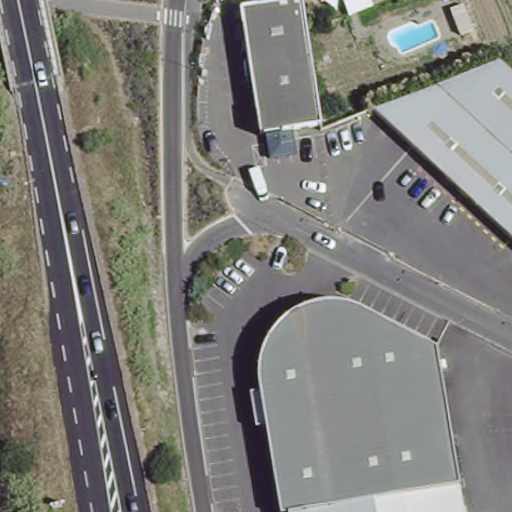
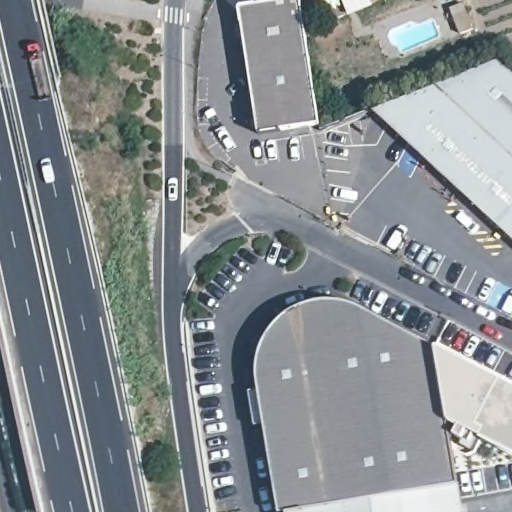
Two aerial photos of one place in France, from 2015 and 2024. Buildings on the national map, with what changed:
unchanged [(240,9),(302,0),(308,43),(320,126),(259,135),(240,9)]
unchanged [(351,15),(345,0),(384,0),(351,15)]
unchanged [(497,59),(512,72),(512,235),(373,111),(497,59)]
unchanged [(256,367),(257,358),(258,349),(261,340),(265,332),(270,325),(276,318),(282,312),(290,307),(298,303),(306,300),(315,298),(324,297),(333,297),(342,299),(351,302),(359,306),(436,347),(465,512),(305,512),(280,512),(257,379),(256,367)]
new [(467,432),(464,440),(456,436),(459,427),(449,422),(436,347),(512,386),(512,456),(467,432)]

